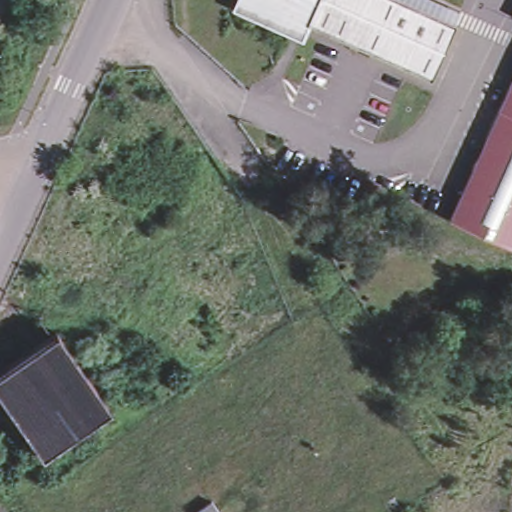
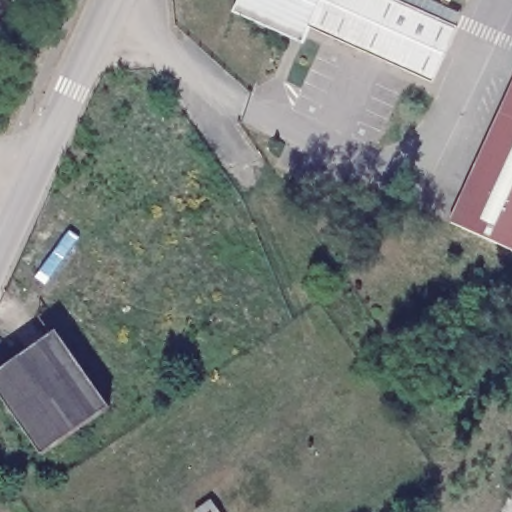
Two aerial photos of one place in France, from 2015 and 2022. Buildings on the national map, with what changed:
unchanged [(297,32),(297,34),(240,7),(244,0),(409,0),(460,23),(461,24),(436,80),(311,23),(305,36),(297,32)]
unchanged [(465,12),(460,23),(409,0),(440,0),(465,12)]
unchanged [(512,252),(450,224),(512,87),(512,252)]
unchanged [(44,457),(0,394),(0,376),(56,335),(108,408),(44,457)]

